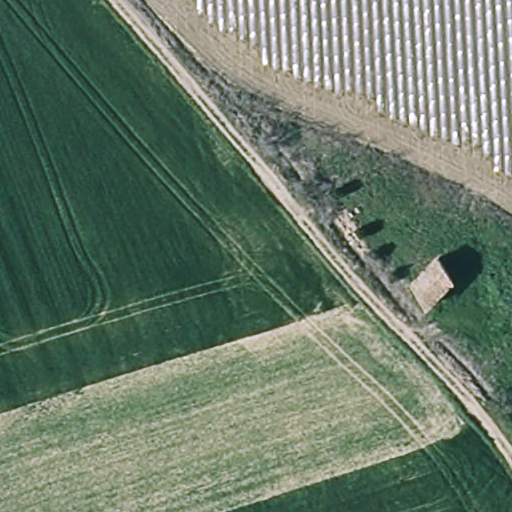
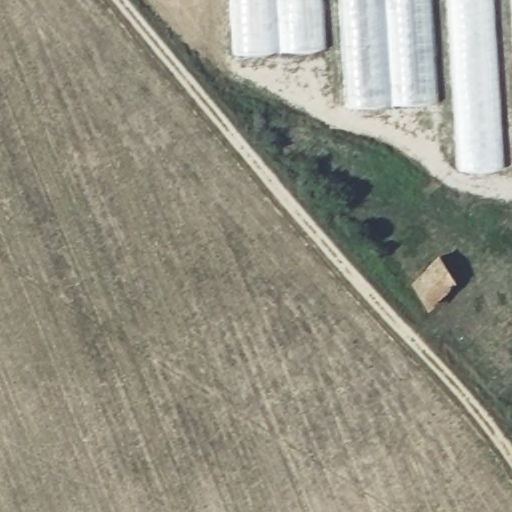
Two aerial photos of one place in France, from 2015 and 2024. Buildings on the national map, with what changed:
new [(320,0),(324,48),(237,53),(234,0),(320,0)]
new [(349,107),(342,0),(428,0),(435,102),(349,107)]
new [(512,0),(512,168),(461,172),(450,0),(512,0)]
unchanged [(427,306),(413,283),(439,257),(454,280),(427,306)]

